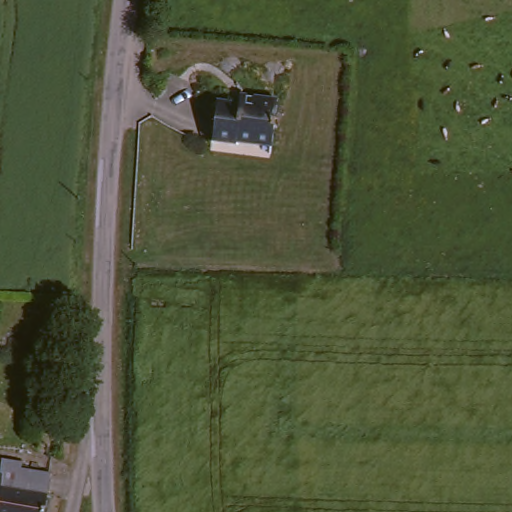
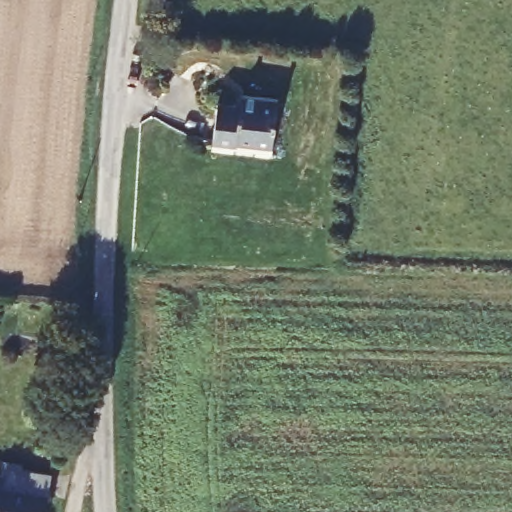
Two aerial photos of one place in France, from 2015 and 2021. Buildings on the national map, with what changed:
unchanged [(281,95),(277,144),(239,140),(238,144),(215,143),(219,100),(242,102),(243,92),(281,95)]
unchanged [(46,512),(0,512),(0,479),(1,479),(3,469),(51,476),(46,512)]

